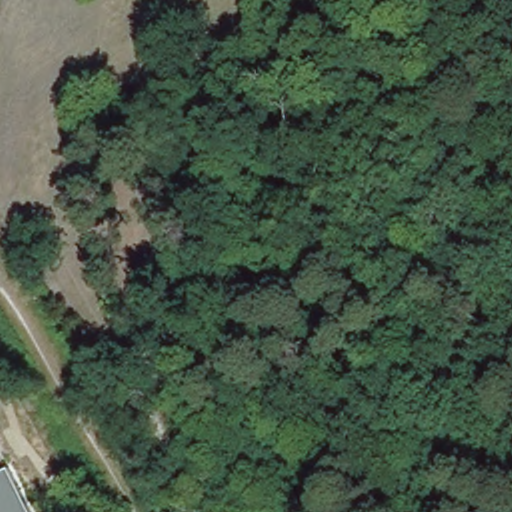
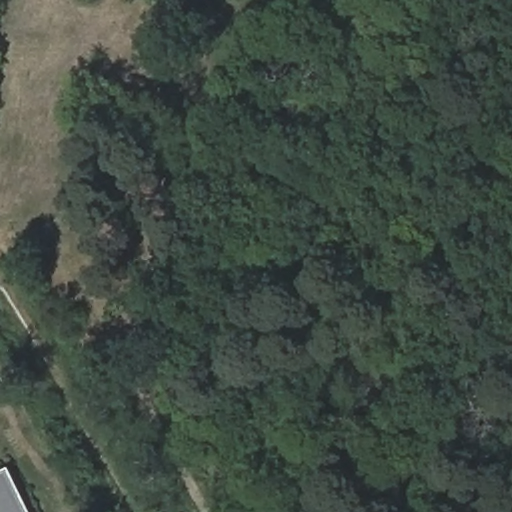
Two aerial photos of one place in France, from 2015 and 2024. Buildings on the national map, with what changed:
unchanged [(0,473),(11,468),(33,512),(0,512),(0,473)]

